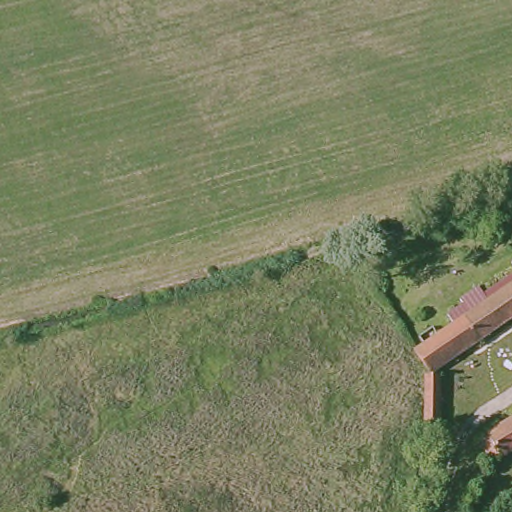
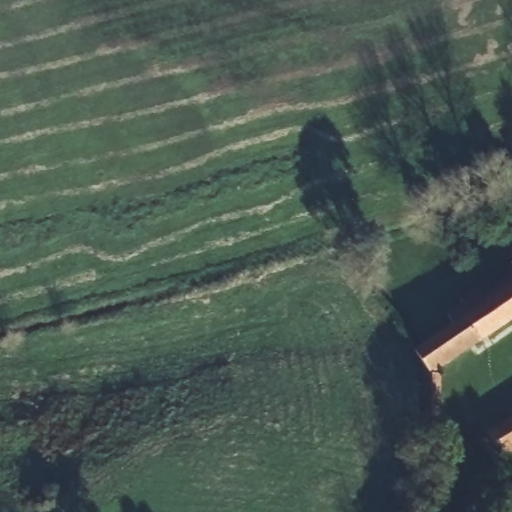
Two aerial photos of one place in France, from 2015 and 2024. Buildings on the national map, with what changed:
unchanged [(512,303),(450,344),(447,412),(430,412),(430,355),(439,354),(422,332),(512,273),(512,303)]
unchanged [(495,446),(487,450),(475,434),(484,429),(482,427),(512,410),(512,441),(498,449),(495,446)]

